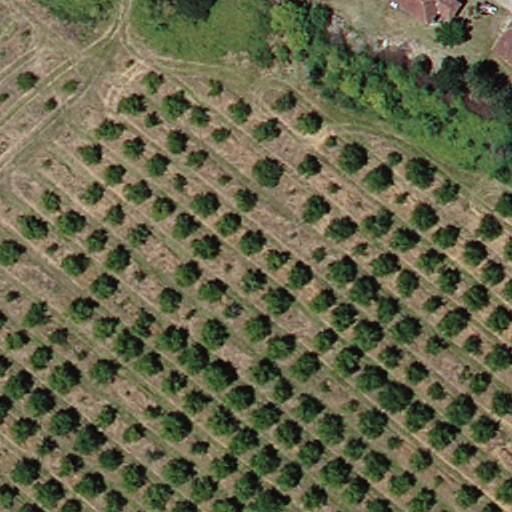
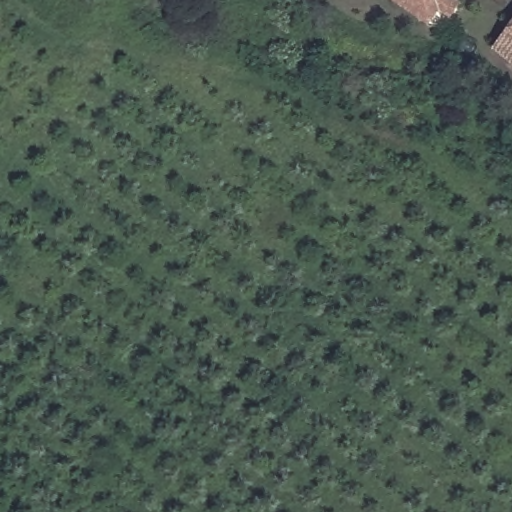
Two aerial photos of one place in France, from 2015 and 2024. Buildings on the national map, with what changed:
unchanged [(437,12),(428,26),(398,7),(394,15),(386,9),(392,0),(451,0),(457,4),(450,19),(437,12)]
unchanged [(512,28),(512,65),(494,52),(512,28)]

